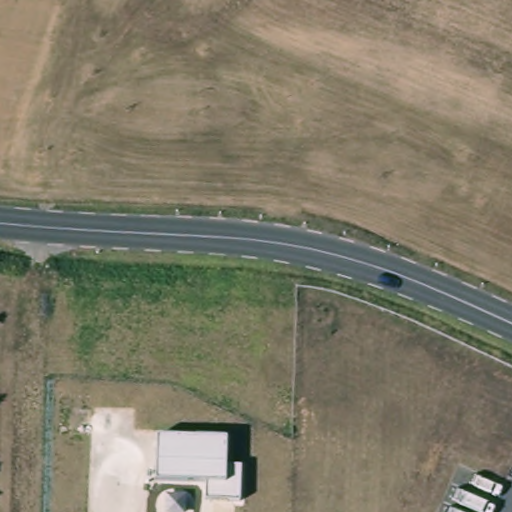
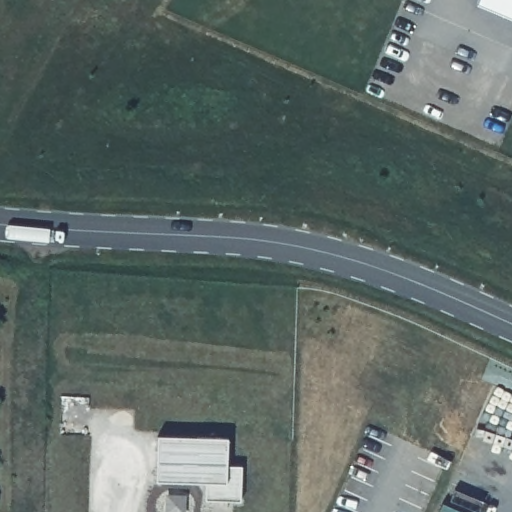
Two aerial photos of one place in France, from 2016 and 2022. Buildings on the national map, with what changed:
new [(478,0),(512,0),(512,21),(476,5),(478,0)]
unchanged [(227,438),(226,465),(239,467),(239,501),(205,502),(205,481),(156,478),(156,435),(227,438)]

